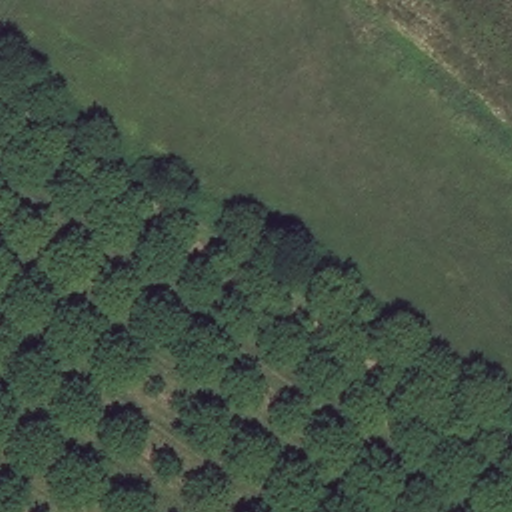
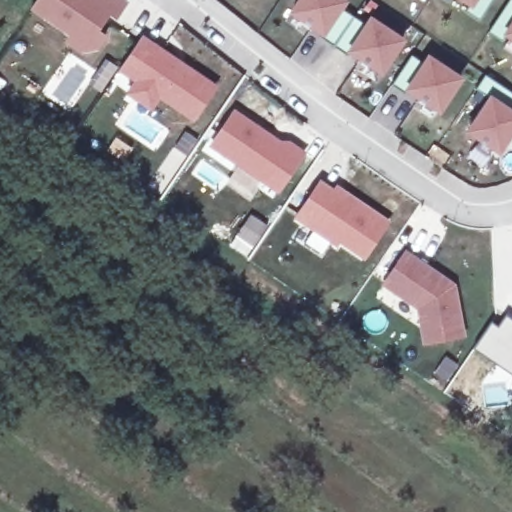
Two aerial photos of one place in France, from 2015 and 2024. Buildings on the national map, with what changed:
new [(117,19),(110,15),(100,30),(108,36),(100,49),(82,53),(65,42),(69,36),(31,10),(38,0),(123,0),(127,3),(117,19)]
new [(383,70),(375,82),(361,74),(368,63),(350,51),(347,57),(318,40),(322,32),(306,21),(298,32),(285,23),(300,0),(342,0),(397,36),(377,66),(383,70)]
new [(470,5),(462,0),(493,0),(480,20),(466,11),(470,5)]
new [(502,42),(489,32),(510,0),(512,0),(512,37),(507,34),(502,42)]
new [(142,34),(220,86),(194,124),(160,100),(152,112),(124,94),(132,81),(117,70),(142,34)]
new [(420,112),(426,101),(409,90),(405,95),(391,85),(416,50),(461,77),(432,121),(420,112)]
new [(511,111),(512,112),(512,131),(498,150),(494,147),(487,159),(473,149),(480,139),(468,131),(489,99),(475,89),(484,75),(512,93),(512,110),(511,111)]
new [(281,141),(292,141),(306,154),(302,160),(278,194),(209,145),(235,110),(281,141)]
new [(387,222),(365,257),(339,240),(336,245),(296,218),(320,182),(333,191),(337,187),(387,222)]
new [(465,337),(423,345),(417,310),(380,285),(407,251),(455,285),(465,337)]
new [(472,350),(490,322),(498,326),(505,315),(512,320),(512,375),(472,350)]

